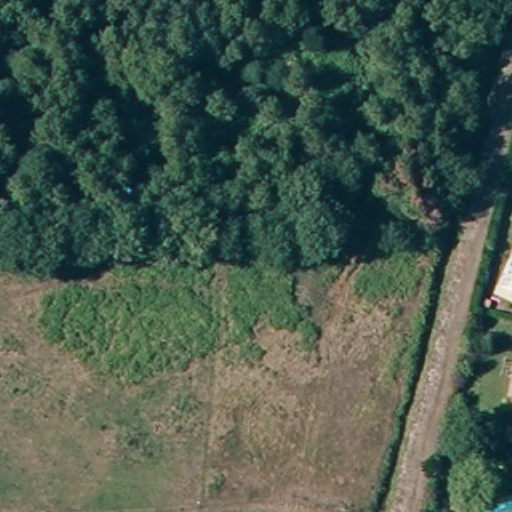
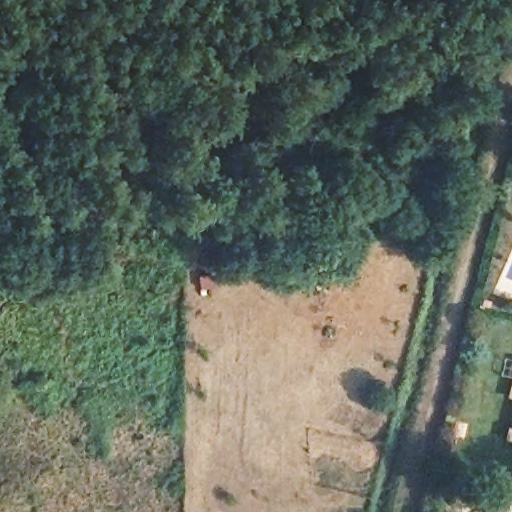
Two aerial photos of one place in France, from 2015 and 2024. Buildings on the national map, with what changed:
unchanged [(511,403),(512,395),(512,403),(511,403)]

